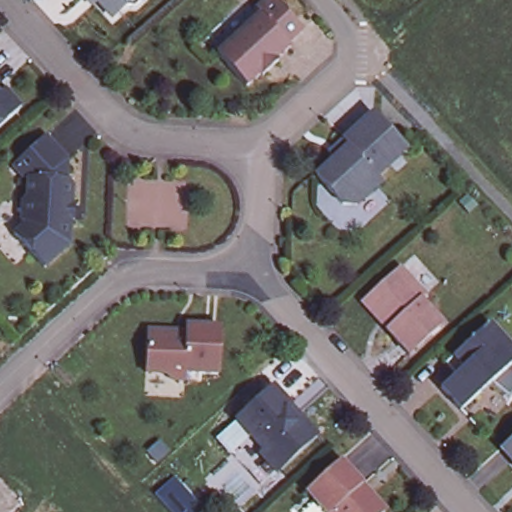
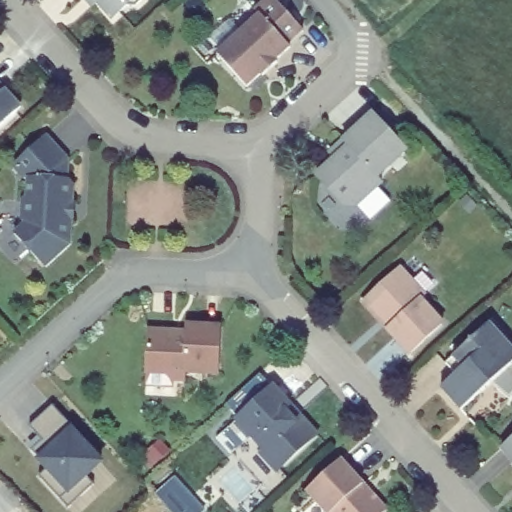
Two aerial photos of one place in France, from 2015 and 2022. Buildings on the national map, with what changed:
unchanged [(126,5),(111,16),(98,0),(140,0),(133,6),(126,5)]
unchanged [(271,0),(278,0),(306,33),(291,46),(294,49),(279,62),(281,65),(266,79),(264,76),(250,88),(221,55),(264,16),(259,11),(271,0)]
unchanged [(11,95),(18,102),(20,106),(17,115),(0,130),(0,91),(3,95),(11,95)]
unchanged [(341,144),(371,118),(404,156),(376,181),(380,186),(356,208),(339,209),(314,180),(346,151),(341,144)]
unchanged [(16,167),(48,136),(71,160),(69,181),(77,187),(73,246),(48,269),(18,236),(29,226),(23,219),(25,202),(30,200),(29,180),(16,167)]
unchanged [(418,299),(441,324),(407,355),(384,330),(389,324),(366,299),(399,269),(423,295),(418,299)]
unchanged [(183,380),(168,379),(164,374),(144,372),(147,329),(183,333),(184,324),(219,328),(216,374),(183,372),(183,380)]
unchanged [(451,421),(431,398),(445,385),(434,373),(478,332),(508,364),(501,370),(512,382),(512,392),(500,408),(481,394),(451,421)]
unchanged [(288,412),(315,441),(279,475),(263,457),(267,452),(239,422),(275,388),(293,408),(288,412)]
new [(38,477),(48,470),(31,453),(43,444),(29,429),(53,408),(68,425),(102,465),(88,477),(94,484),(66,510),(38,477)]
unchanged [(502,448),(512,438),(512,458),(502,448)]
unchanged [(363,482),(361,484),(371,495),(374,493),(387,507),(382,512),(330,512),(309,489),(343,458),(363,482)]

